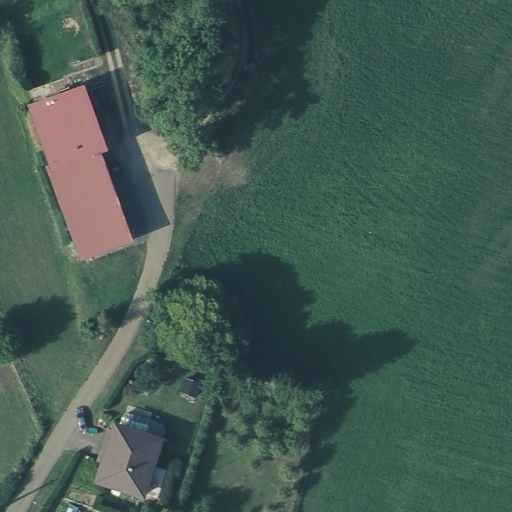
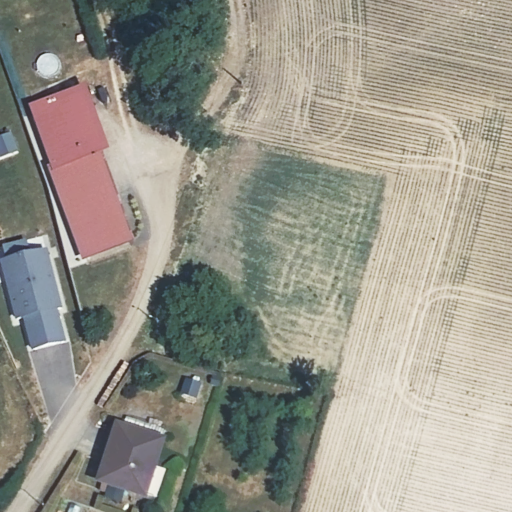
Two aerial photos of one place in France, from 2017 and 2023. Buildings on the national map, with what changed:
unchanged [(125,236),(77,255),(27,114),(74,97),(125,236)]
new [(55,306),(50,307),(62,340),(31,351),(20,318),(12,321),(2,292),(5,291),(0,277),(0,262),(35,250),(55,306)]
unchanged [(160,443),(154,472),(162,477),(166,458),(180,465),(168,512),(166,512),(94,488),(110,422),(160,443)]

